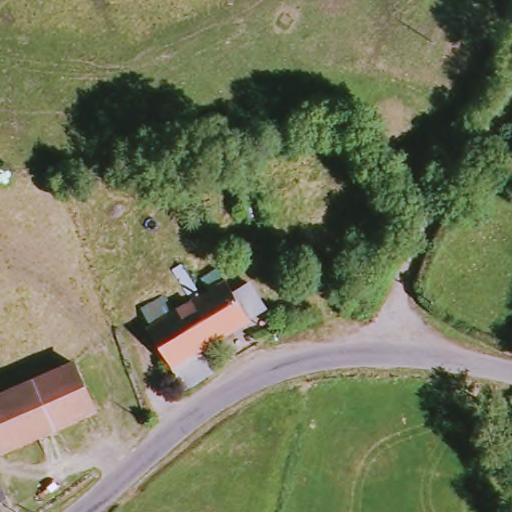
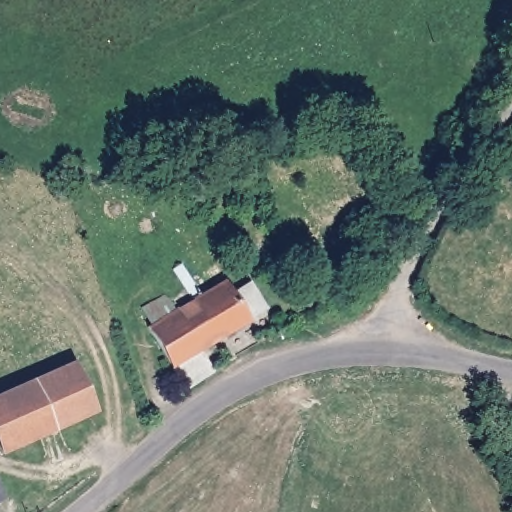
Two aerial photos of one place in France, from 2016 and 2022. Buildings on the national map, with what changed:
unchanged [(158,321),(149,306),(171,293),(181,307),(196,299),(177,268),(189,260),(186,255),(205,244),(216,263),(196,275),(208,292),(231,278),(236,286),(251,277),(266,305),(254,312),(255,318),(211,346),(221,365),(193,385),(153,325),(158,321)]
unchanged [(3,451),(0,444),(0,396),(79,365),(98,414),(3,451)]
unchanged [(0,501),(0,482),(7,498),(0,501)]

